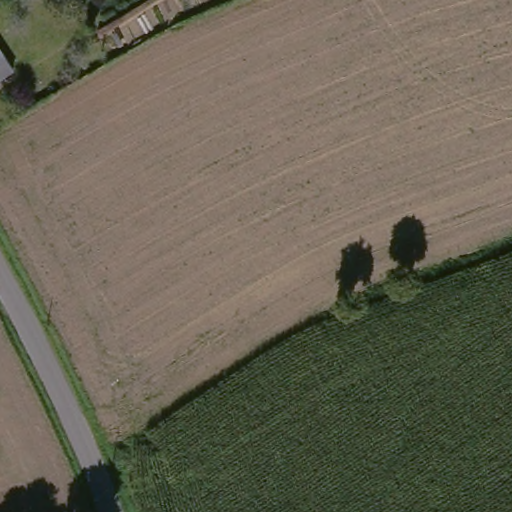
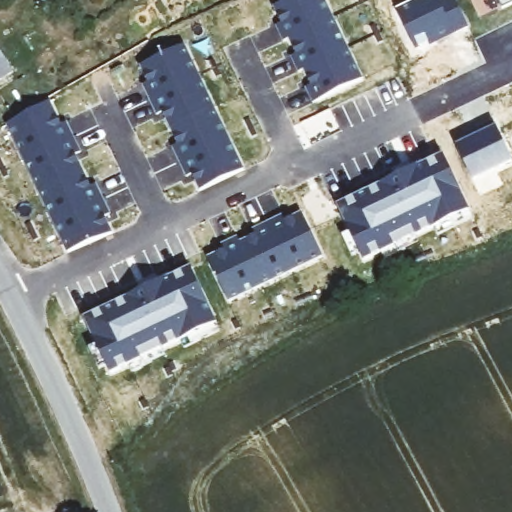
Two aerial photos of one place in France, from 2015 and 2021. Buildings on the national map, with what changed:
new [(285,0),(323,0),(362,79),(312,103),(304,87),(310,85),(303,69),(297,72),(289,56),(295,54),(288,38),(282,41),(275,25),(280,23),(272,6),(285,0)]
new [(418,0),(436,0),(437,1),(439,0),(454,0),(467,26),(437,41),(436,38),(415,48),(397,10),(418,0)]
new [(501,8),(497,0),(512,0),(512,3),(501,8)]
new [(183,45),(243,170),(199,191),(191,174),(185,176),(171,146),(177,144),(161,112),(156,114),(141,84),(146,82),(139,66),(183,45)]
unchanged [(0,83),(0,58),(11,76),(0,83)]
new [(480,134),(476,127),(492,120),(511,160),(471,179),(455,145),(480,134)]
new [(442,155),(468,210),(363,260),(336,205),(442,155)]
new [(223,250),(220,244),(236,237),(238,242),(254,235),(252,229),(281,215),(284,220),(300,212),(322,257),(227,301),(206,257),(223,250)]
new [(189,267),(215,323),(109,374),(83,318),(189,267)]

